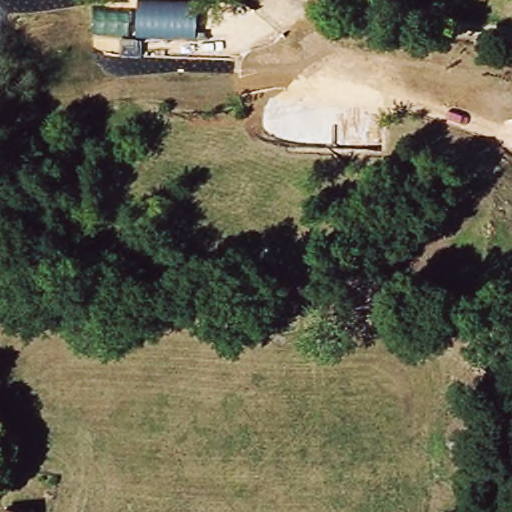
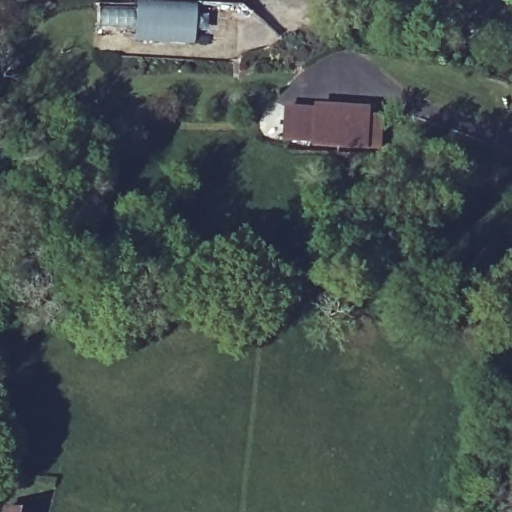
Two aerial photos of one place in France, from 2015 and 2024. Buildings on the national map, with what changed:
unchanged [(197,4),(197,38),(137,37),(138,1),(197,4)]
new [(384,106),(381,149),(282,145),(284,101),(384,106)]
unchanged [(14,512),(5,512),(6,510),(14,512)]

